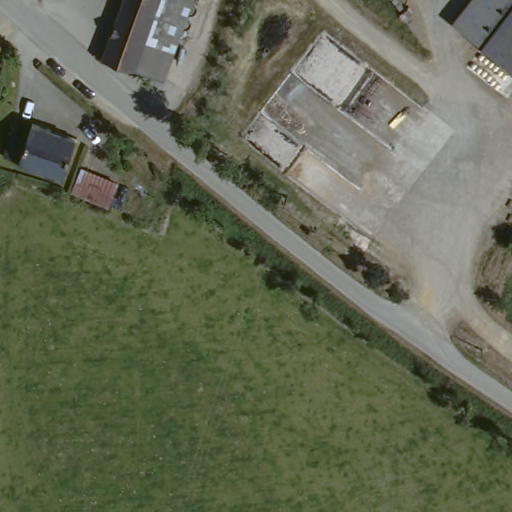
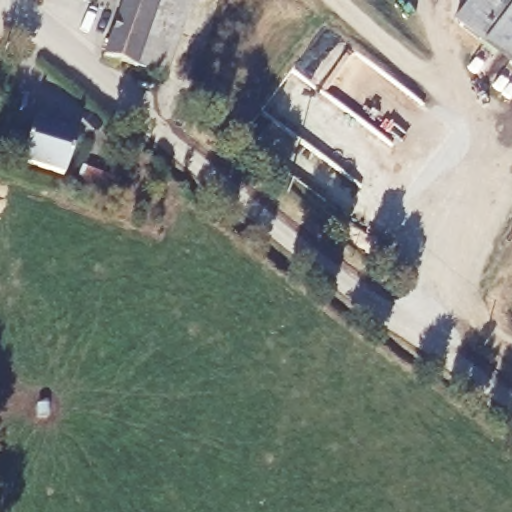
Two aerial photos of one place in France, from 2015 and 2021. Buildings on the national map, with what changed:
unchanged [(112,60),(107,56),(127,0),(161,0),(137,69),(112,60)]
unchanged [(161,0),(201,0),(170,80),(137,69),(161,0)]
unchanged [(512,10),(490,39),(463,18),(477,0),(512,0),(512,10)]
unchanged [(512,10),(512,55),(490,39),(512,10)]
unchanged [(15,125),(31,132),(36,117),(77,133),(65,170),(6,150),(15,125)]
unchanged [(87,166),(124,179),(116,204),(79,192),(87,166)]

